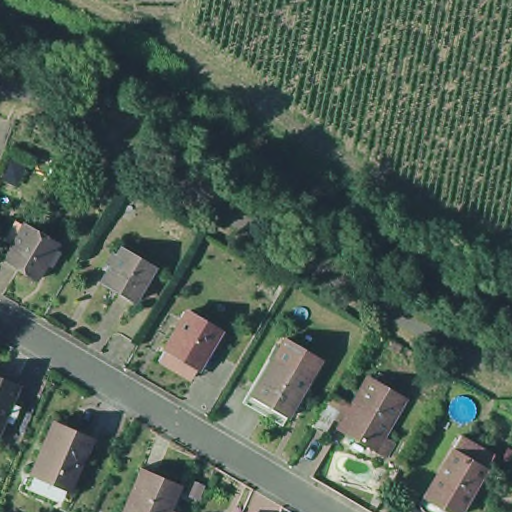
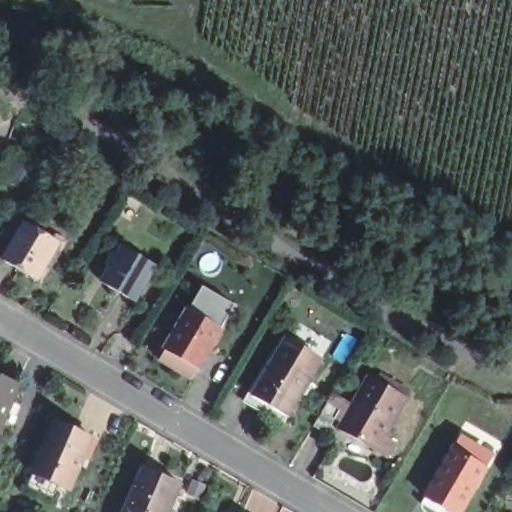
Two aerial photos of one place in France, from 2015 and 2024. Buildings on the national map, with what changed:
unchanged [(66,239),(45,275),(13,257),(21,240),(13,235),(24,216),(32,221),(33,220),(66,239)]
unchanged [(128,243),(158,261),(138,294),(108,276),(128,243)]
unchanged [(169,350),(179,334),(198,302),(229,321),(210,353),(201,369),(169,350)]
unchanged [(262,390),(284,352),(294,332),(312,342),(331,353),(319,373),(298,411),(262,390)]
unchanged [(13,407),(1,436),(0,436),(0,370),(24,380),(17,398),(23,400),(19,410),(13,407)]
unchanged [(399,456),(387,449),(349,427),(342,423),(336,433),(323,425),(341,394),(361,406),(379,376),(386,380),(389,374),(418,391),(414,397),(395,434),(407,441),(399,456)]
unchanged [(31,487),(39,468),(60,421),(96,437),(73,489),(67,503),(31,487)]
unchanged [(431,488),(436,480),(463,434),(496,453),(468,499),(464,508),(431,488)]
unchanged [(171,512),(126,512),(148,462),(186,479),(171,512)]

